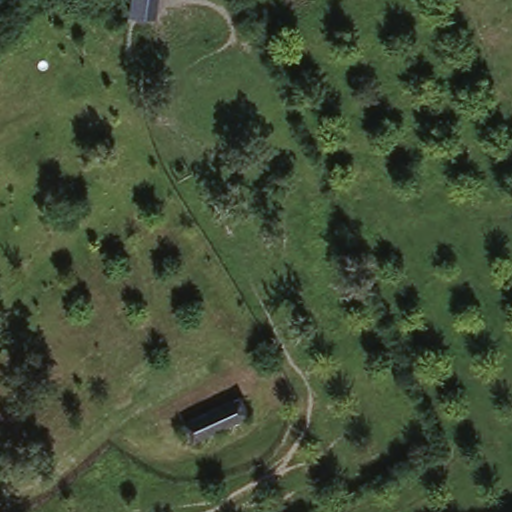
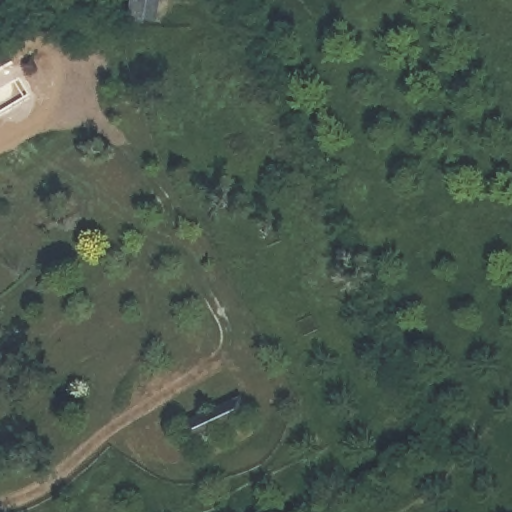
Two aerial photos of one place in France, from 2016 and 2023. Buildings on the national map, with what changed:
unchanged [(242,394),(249,416),(191,441),(182,419),(242,394)]

